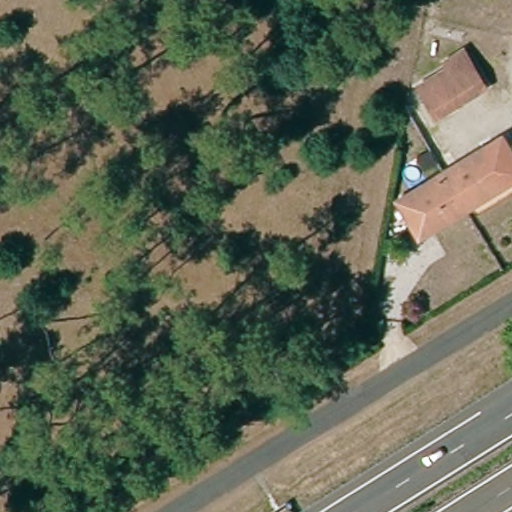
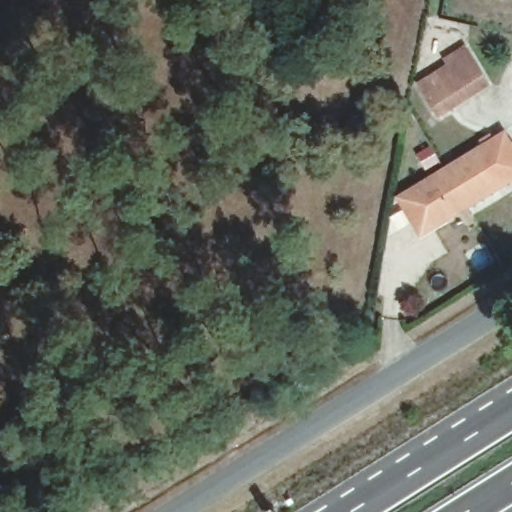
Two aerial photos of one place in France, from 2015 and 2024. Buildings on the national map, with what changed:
unchanged [(480,86),(438,113),(418,82),(448,64),(445,58),(464,46),(467,52),(461,55),(480,86)]
unchanged [(388,206),(401,199),(395,188),(417,175),(424,185),(493,142),(512,173),(512,180),(410,241),(388,206)]

